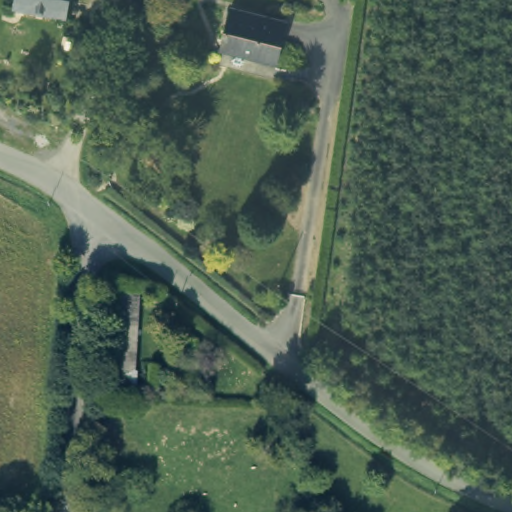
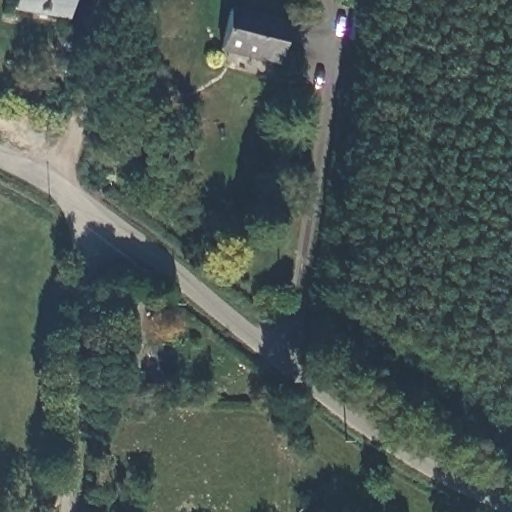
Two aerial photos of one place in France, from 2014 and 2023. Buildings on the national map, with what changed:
unchanged [(19,0),(72,0),(71,15),(19,11),(19,0)]
unchanged [(281,64),(225,48),(236,7),(293,22),(281,64)]
unchanged [(145,292),(141,389),(107,387),(115,292),(145,292)]

